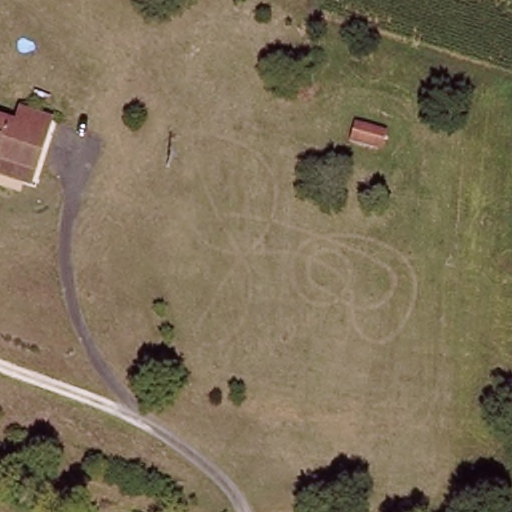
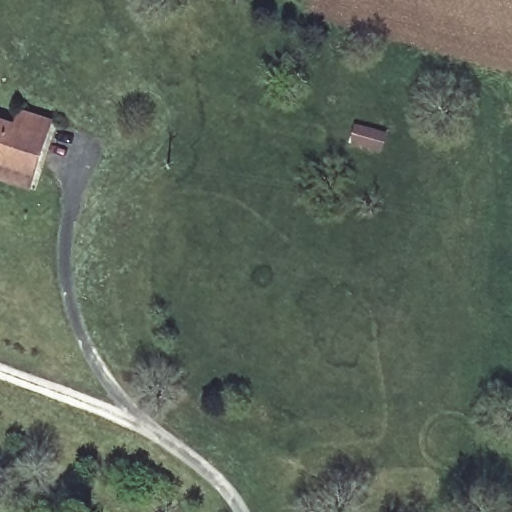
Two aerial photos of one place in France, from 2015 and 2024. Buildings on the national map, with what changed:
unchanged [(34,174),(0,162),(0,122),(17,129),(24,114),(51,123),(34,174)]

